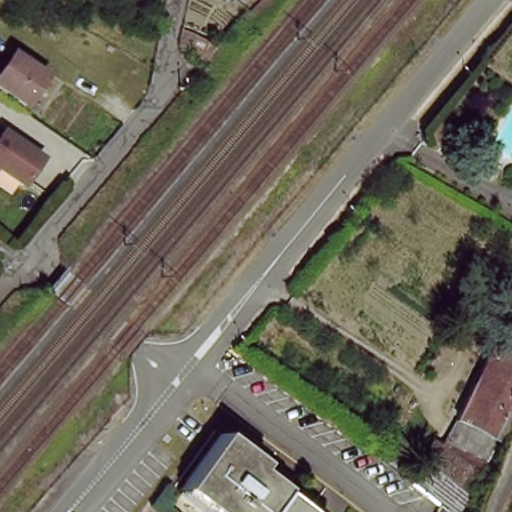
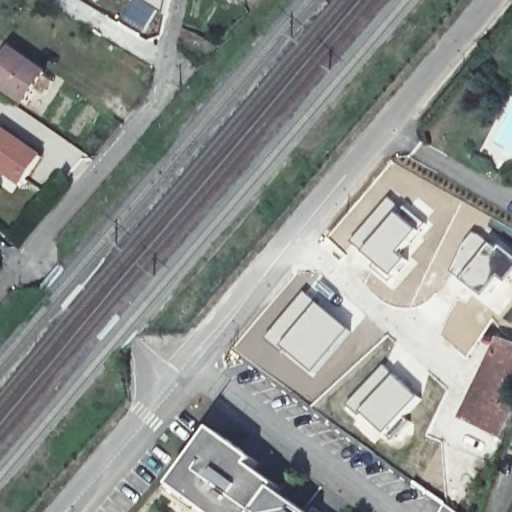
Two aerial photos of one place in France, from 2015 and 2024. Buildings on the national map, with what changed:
new [(118,19),(131,0),(166,0),(163,14),(156,11),(141,33),(118,19)]
new [(250,9),(239,0),(257,0),(250,9)]
unchanged [(42,74),(41,75),(50,82),(40,95),(31,90),(21,104),(0,89),(0,64),(9,51),(42,74)]
unchanged [(0,170),(0,133),(1,130),(41,157),(22,185),(0,170)]
new [(391,195),(406,207),(412,201),(429,217),(403,254),(409,260),(391,281),(351,244),(391,195)]
new [(474,230),(512,255),(512,280),(507,286),(502,283),(485,302),(470,292),(448,272),(474,230)]
new [(308,291),(352,331),(313,377),(266,340),(308,291)]
new [(457,296),(464,300),(470,292),(485,302),(496,311),(464,356),(436,334),(457,296)]
unchanged [(464,395),(501,317),(512,322),(512,417),(464,395)]
new [(385,365),(420,400),(385,438),(346,407),(385,365)]
unchanged [(503,443),(452,421),(464,395),(512,417),(512,421),(503,443)]
unchanged [(217,435),(256,465),(252,470),(279,490),(274,495),(297,512),(200,512),(173,491),(217,435)]
unchanged [(466,512),(433,512),(443,495),(466,512)]
unchanged [(313,512),(311,512),(311,510),(313,512)]

